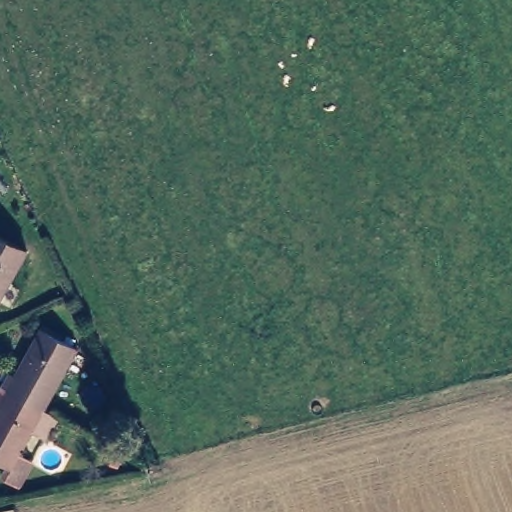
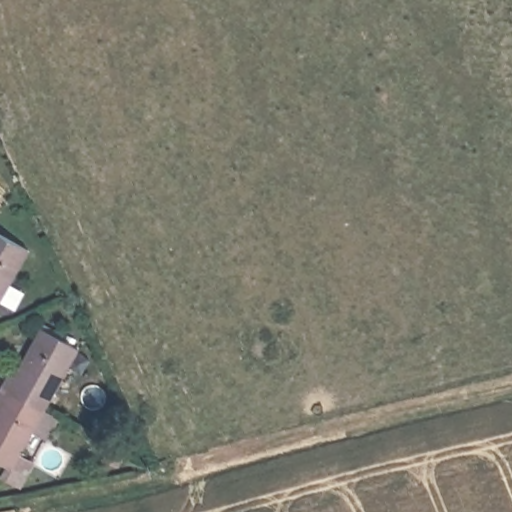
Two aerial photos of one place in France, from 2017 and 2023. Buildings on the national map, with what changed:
unchanged [(0,306),(0,305),(0,236),(28,252),(0,306)]
unchanged [(14,381),(10,378),(39,332),(79,353),(42,418),(5,397),(14,381)]
unchanged [(10,473),(0,468),(0,405),(5,397),(42,418),(10,473)]

